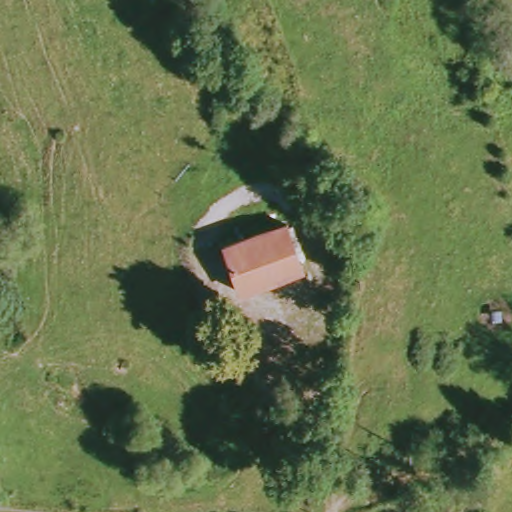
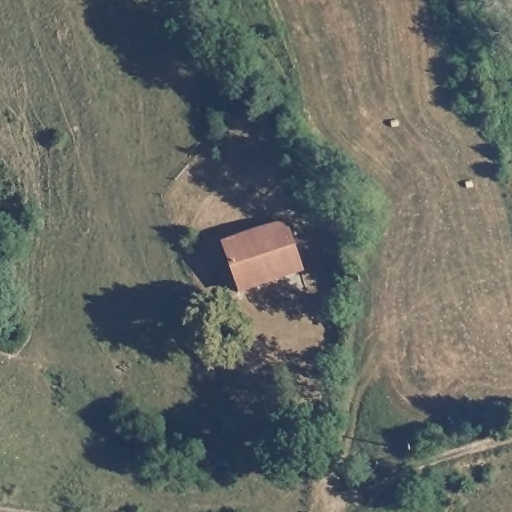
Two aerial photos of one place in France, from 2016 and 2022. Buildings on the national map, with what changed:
unchanged [(307,272),(246,296),(226,248),(291,225),(307,272)]

